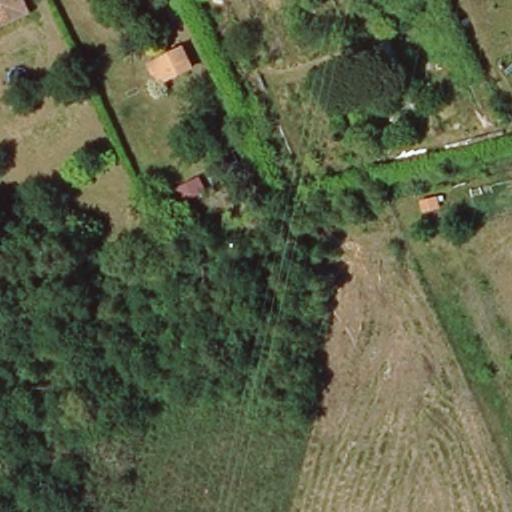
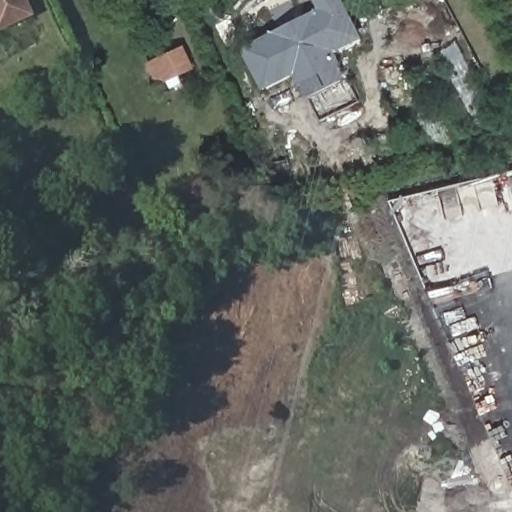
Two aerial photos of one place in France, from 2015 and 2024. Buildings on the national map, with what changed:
unchanged [(0,14),(0,0),(29,0),(29,1),(0,14)]
new [(321,73),(303,82),(297,71),(264,89),(242,48),(272,31),(294,21),(313,11),(320,6),(317,0),(343,0),(362,36),(336,51),(341,61),(321,73)]
unchanged [(150,84),(141,63),(178,48),(186,69),(150,84)]

